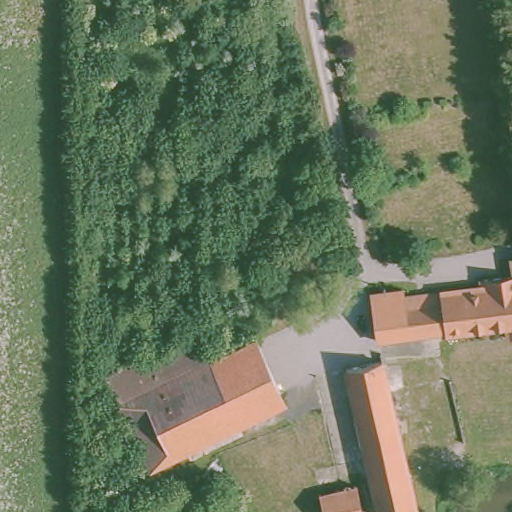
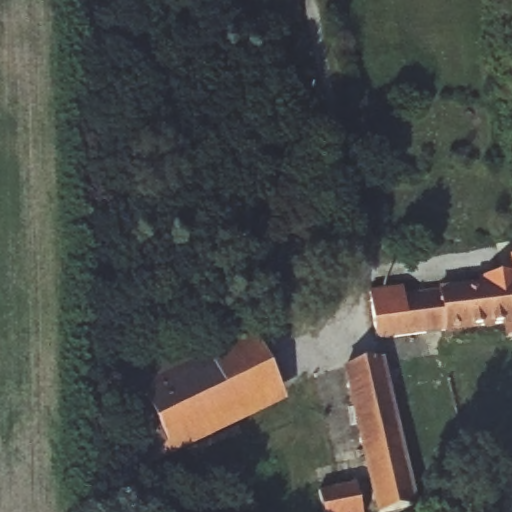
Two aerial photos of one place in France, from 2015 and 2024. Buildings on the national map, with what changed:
unchanged [(503,326),(375,341),(369,291),(400,290),(401,296),(476,290),(476,280),(508,279),(507,260),(512,260),(512,340),(503,340),(503,326)]
unchanged [(148,468),(117,403),(102,375),(195,330),(210,356),(255,336),(284,405),(148,468)]
unchanged [(346,370),(381,362),(382,367),(401,363),(407,385),(387,390),(413,508),(395,512),(377,512),(371,482),(346,370)]
unchanged [(322,512),(319,493),(371,482),(377,512),(322,512)]

